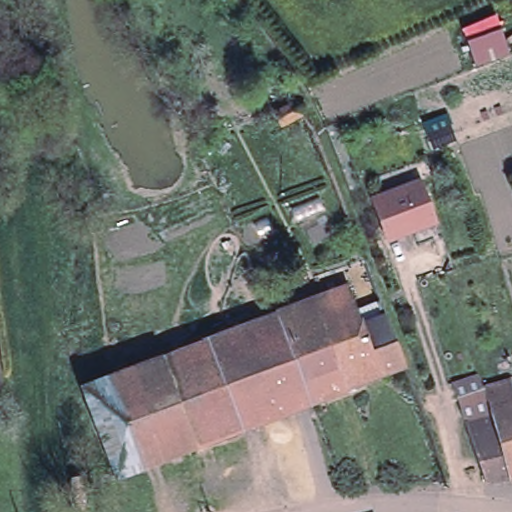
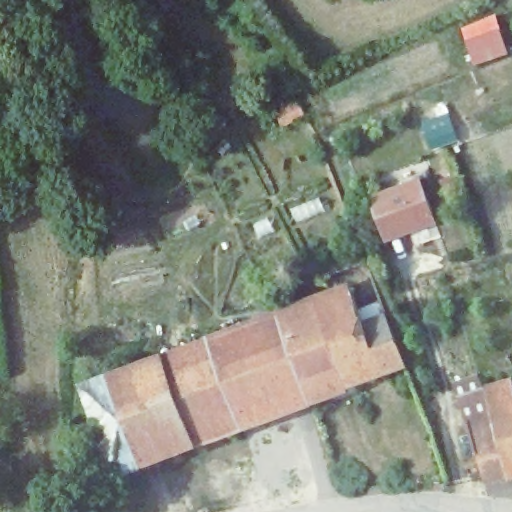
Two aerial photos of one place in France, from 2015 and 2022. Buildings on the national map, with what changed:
unchanged [(306,114),(287,126),(280,113),(299,102),(306,114)]
unchanged [(437,225),(390,243),(383,225),(374,200),(421,182),(432,209),(437,225)]
unchanged [(345,287),(361,324),(383,316),(402,367),(342,389),(310,300),(345,287)]
unchanged [(310,300),(342,389),(305,403),(272,314),(310,300)]
unchanged [(272,314),(305,403),(234,429),(202,340),(272,314)]
unchanged [(202,340),(234,429),(205,440),(175,351),(202,340)]
unchanged [(175,351),(205,440),(189,446),(159,357),(175,351)]
unchanged [(109,475),(80,386),(159,357),(189,446),(109,475)]
unchanged [(508,479),(497,434),(475,438),(455,382),(480,374),(488,388),(512,380),(512,478),(508,479)]
unchanged [(475,438),(497,434),(508,479),(487,483),(472,439),(475,438)]

